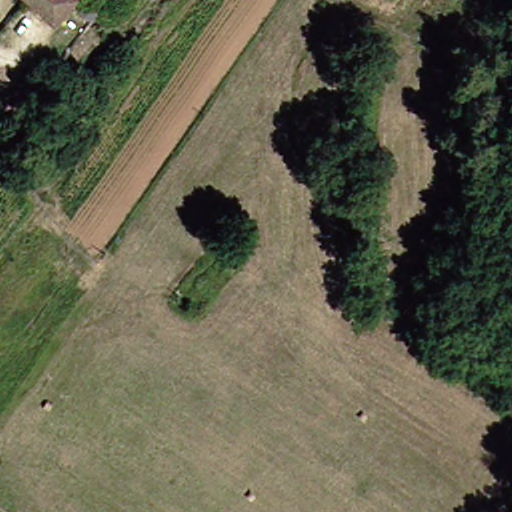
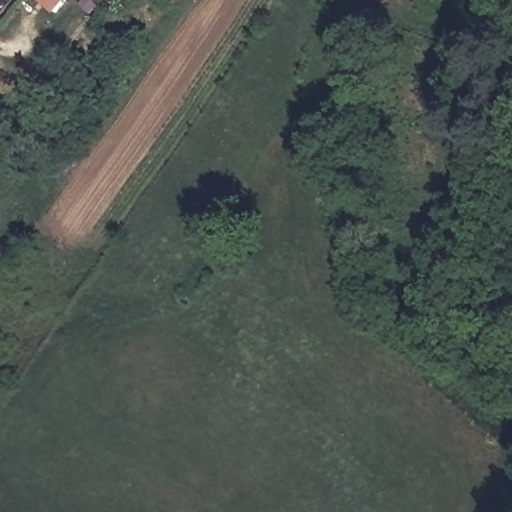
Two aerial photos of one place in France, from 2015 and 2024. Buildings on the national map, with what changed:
unchanged [(66,12),(51,0),(77,0),(66,12)]

